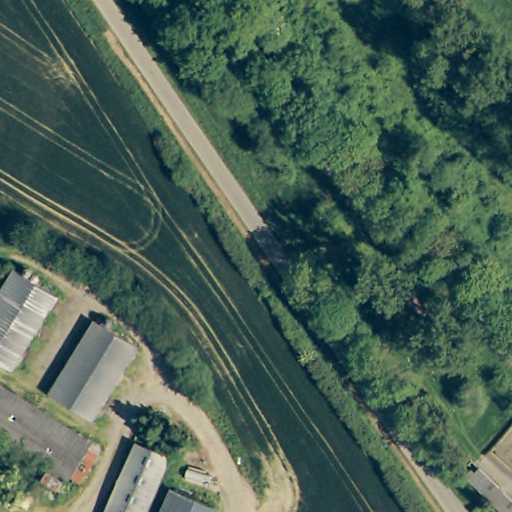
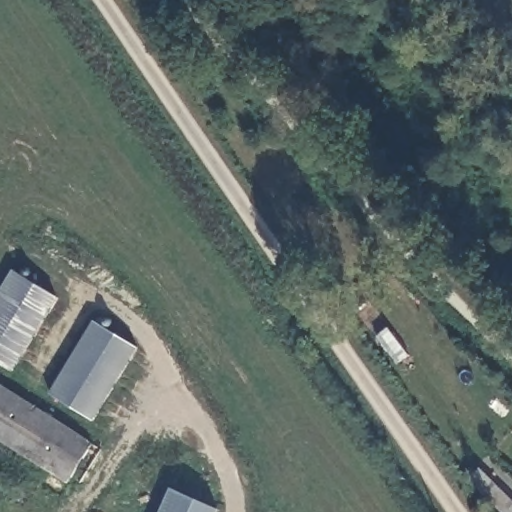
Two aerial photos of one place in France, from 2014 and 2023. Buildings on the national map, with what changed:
unchanged [(62,293),(18,366),(0,355),(0,294),(17,266),(62,293)]
unchanged [(142,347),(97,420),(52,392),(97,320),(142,347)]
unchanged [(60,479),(0,441),(0,384),(86,438),(62,475),(60,479)]
demolished [(172,455),(146,512),(108,512),(139,441),(172,455)]
unchanged [(512,512),(502,512),(468,482),(478,471),(512,501),(512,512)]
unchanged [(219,510),(217,512),(165,512),(175,490),(219,510)]

